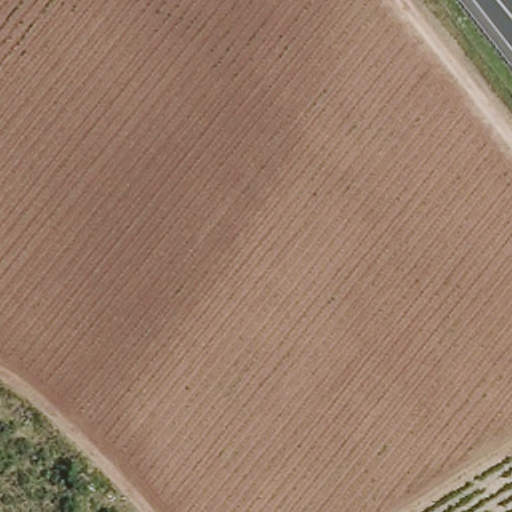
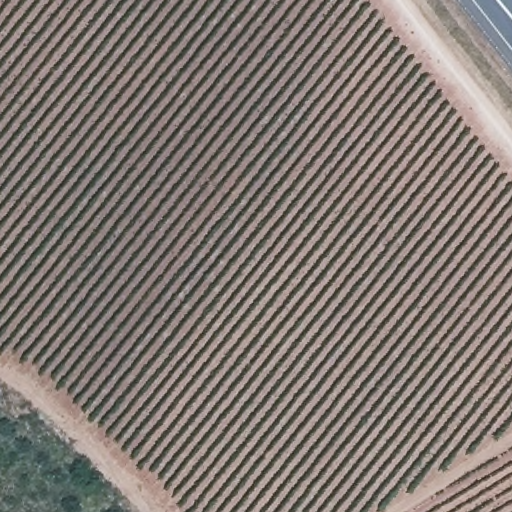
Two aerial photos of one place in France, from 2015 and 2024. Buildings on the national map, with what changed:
[]

